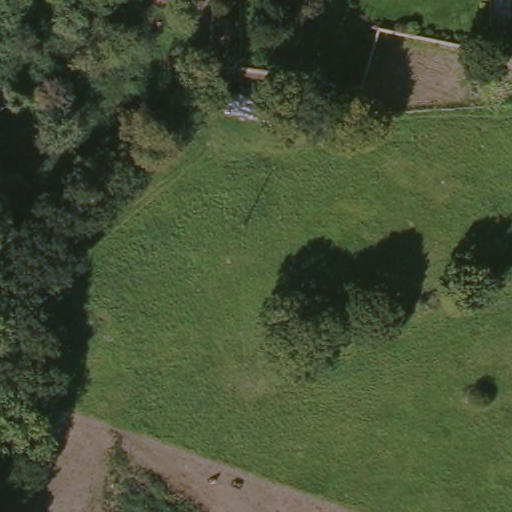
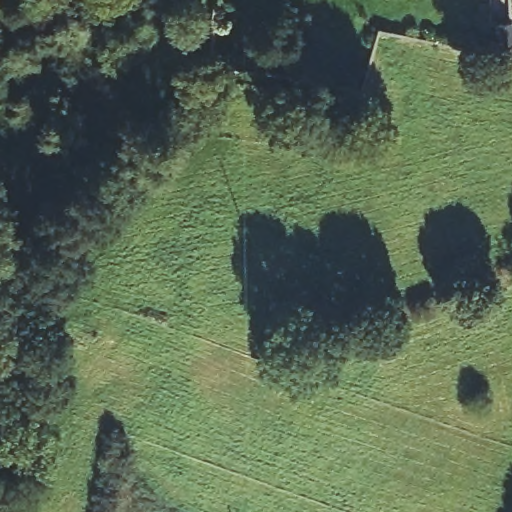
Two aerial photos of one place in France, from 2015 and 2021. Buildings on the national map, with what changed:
unchanged [(479,29),(479,56),(462,57),(462,29),(479,29)]

